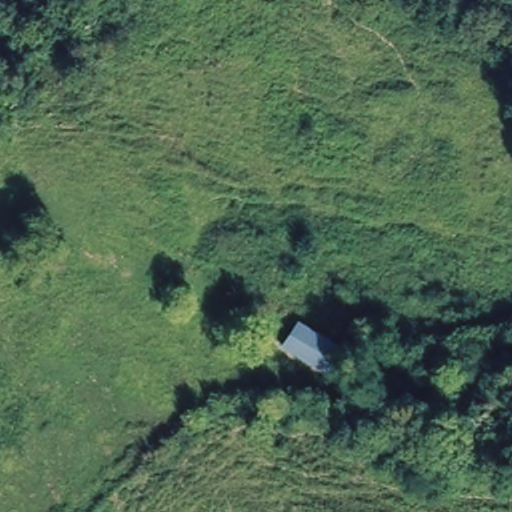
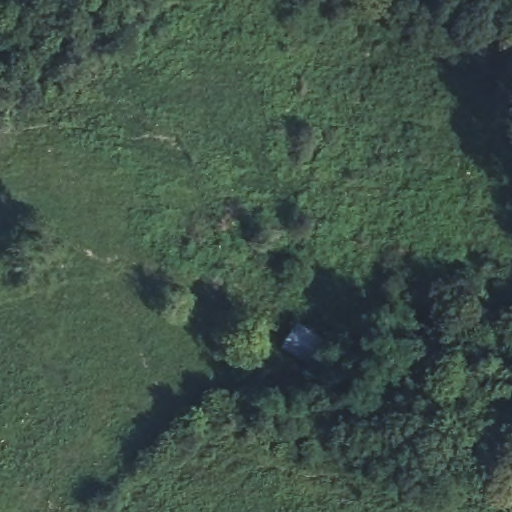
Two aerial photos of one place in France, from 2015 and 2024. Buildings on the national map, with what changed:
unchanged [(337,347),(324,365),(287,340),(301,322),(337,347)]

